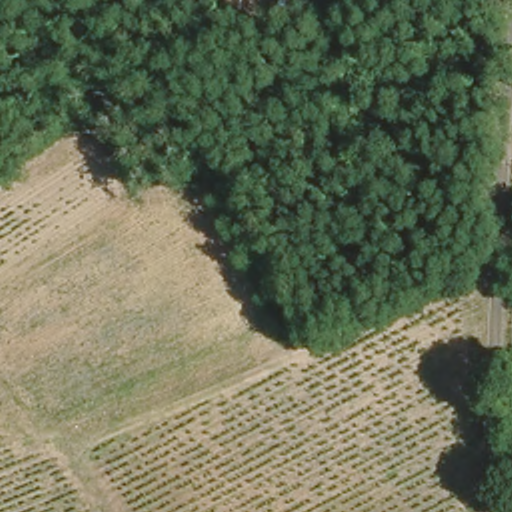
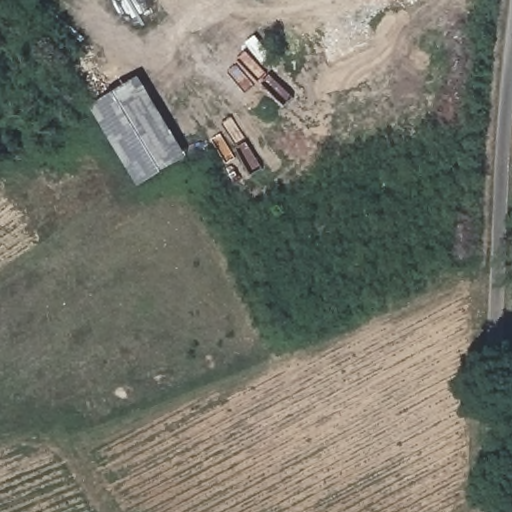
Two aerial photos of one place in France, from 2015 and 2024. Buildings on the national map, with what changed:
new [(92,109),(140,78),(188,161),(140,190),(92,109)]

